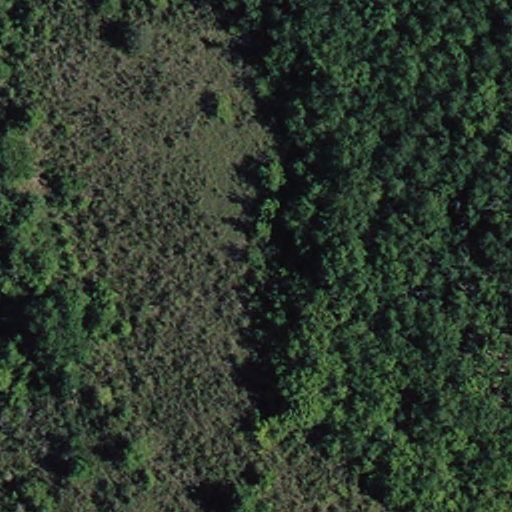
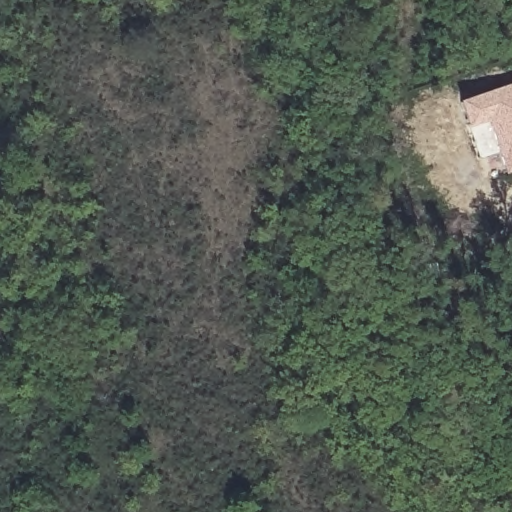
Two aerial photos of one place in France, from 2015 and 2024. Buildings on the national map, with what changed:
new [(486,122),(466,128),(457,101),(512,83),(512,171),(503,174),(486,122)]

